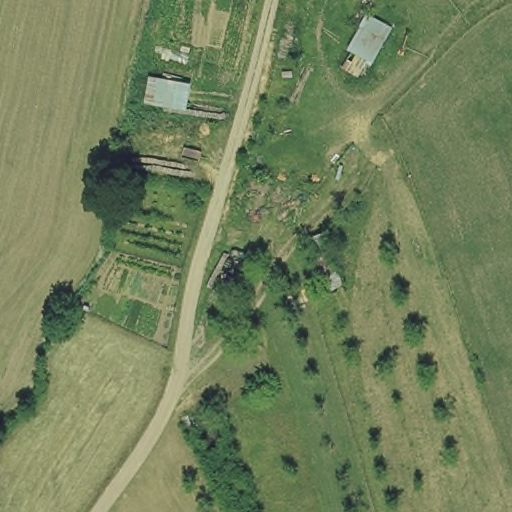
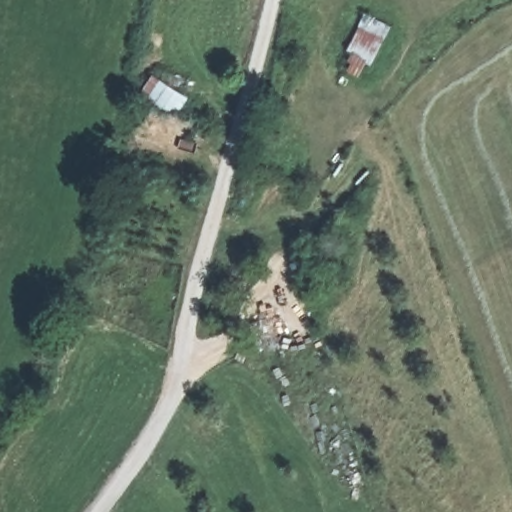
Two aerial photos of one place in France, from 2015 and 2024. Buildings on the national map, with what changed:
unchanged [(364,11),(393,24),(374,63),(367,58),(357,75),(337,67),(364,11)]
unchanged [(190,82),(186,108),(143,103),(147,75),(190,82)]
unchanged [(303,239),(321,230),(342,286),(322,295),(303,239)]

